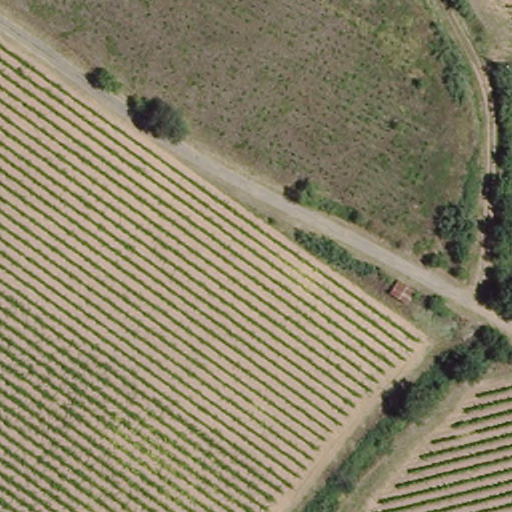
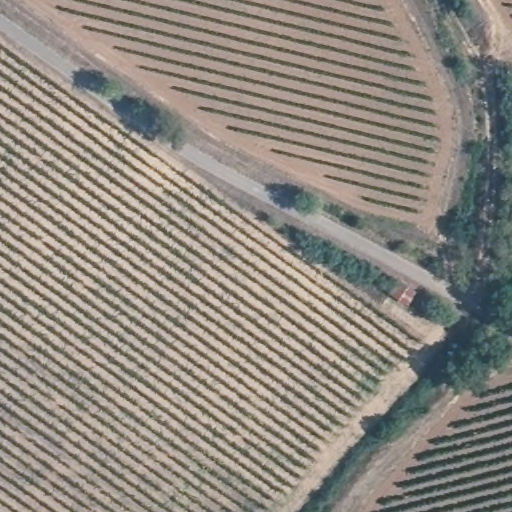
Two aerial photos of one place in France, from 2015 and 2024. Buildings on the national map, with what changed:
unchanged [(399,282),(418,292),(410,308),(392,294),(399,282)]

